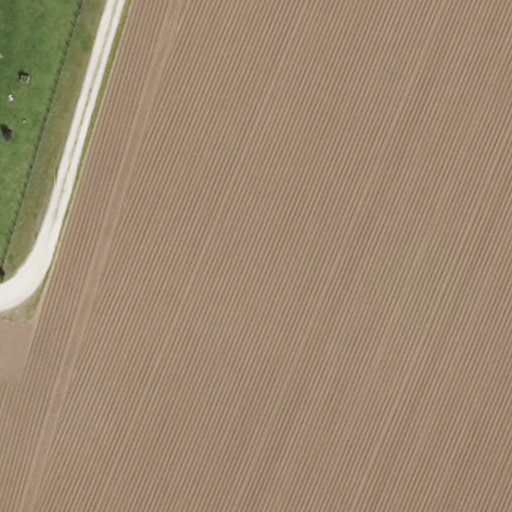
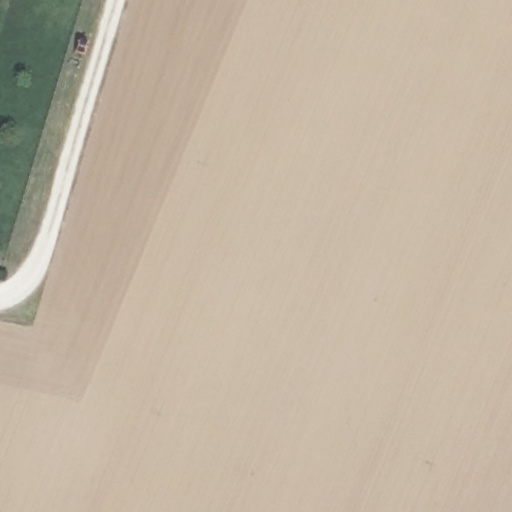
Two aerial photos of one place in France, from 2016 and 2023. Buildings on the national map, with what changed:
[]

